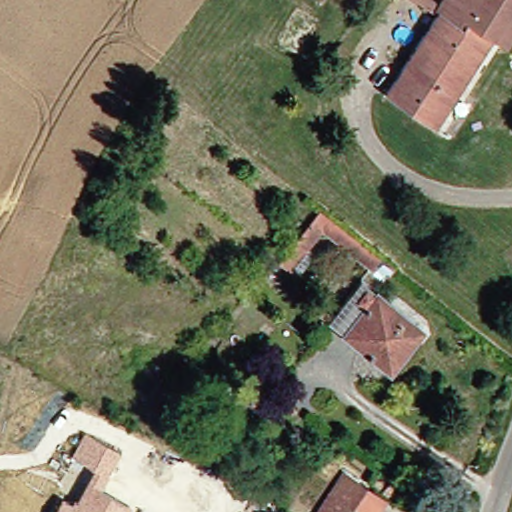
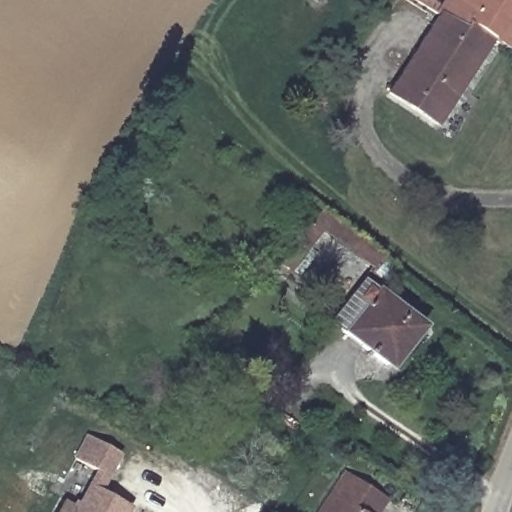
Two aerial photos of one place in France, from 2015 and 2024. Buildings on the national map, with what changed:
unchanged [(444,0),(442,4),(436,0),(444,0)]
unchanged [(446,6),(450,0),(512,0),(512,13),(497,38),(446,6)]
unchanged [(429,36),(446,6),(497,38),(482,68),(429,36)]
unchanged [(510,46),(497,38),(512,13),(512,43),(510,46)]
unchanged [(429,36),(482,68),(449,121),(398,93),(429,36)]
unchanged [(347,334),(331,323),(365,280),(372,272),(324,234),(296,275),(283,264),(321,213),(395,271),(379,292),(427,329),(393,372),(347,334)]
unchanged [(219,469),(203,457),(232,419),(248,432),(219,469)]
unchanged [(63,497),(76,504),(95,470),(73,459),(86,435),(123,455),(102,492),(133,508),(132,512),(56,512),(63,497)]
unchanged [(347,476),(368,492),(357,512),(322,512),(347,476)]

